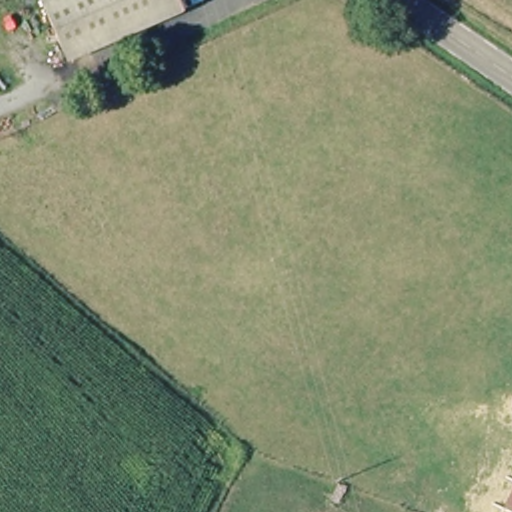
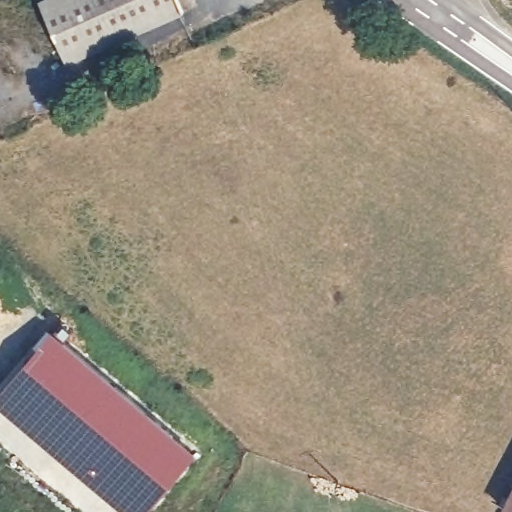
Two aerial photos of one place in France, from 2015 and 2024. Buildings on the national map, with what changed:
unchanged [(182,12),(66,60),(44,0),(177,0),(182,12)]
new [(147,512),(124,512),(0,409),(0,391),(52,331),(197,454),(147,512)]
unchanged [(504,512),(500,510),(512,487),(512,512),(504,512)]

